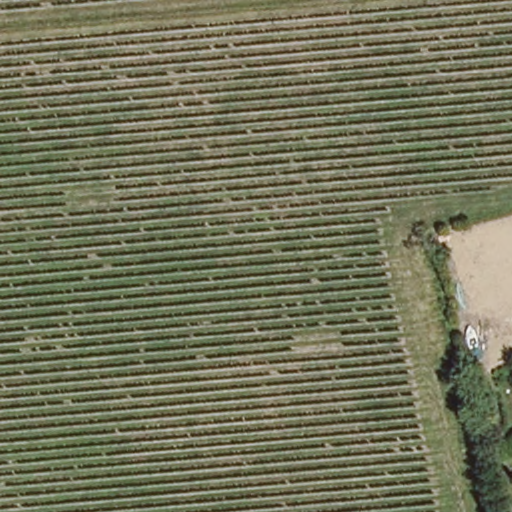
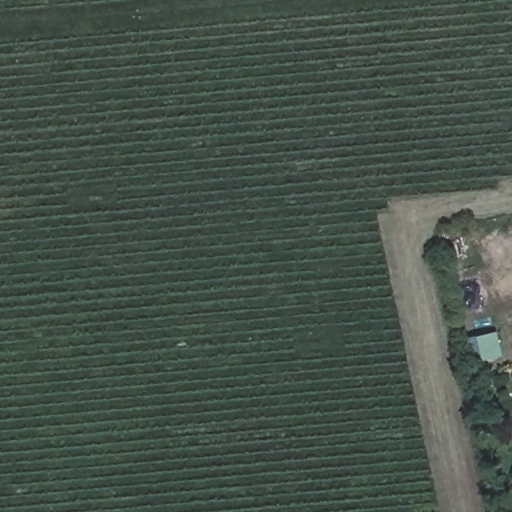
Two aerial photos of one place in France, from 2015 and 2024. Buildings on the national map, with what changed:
[]

